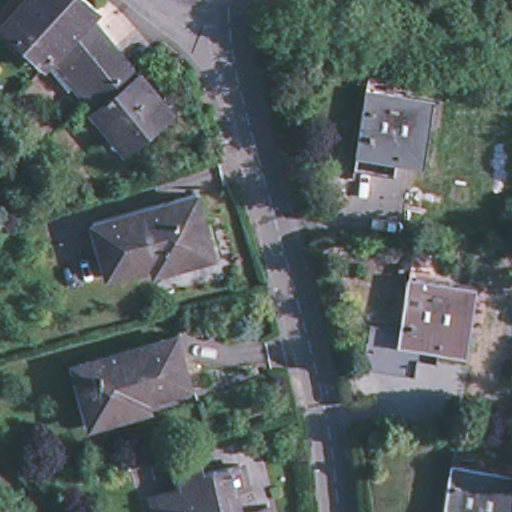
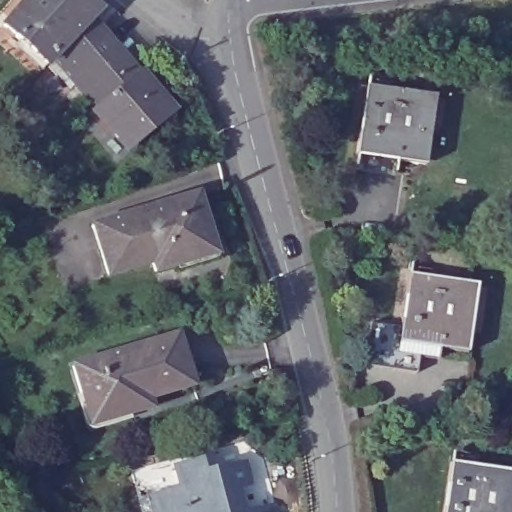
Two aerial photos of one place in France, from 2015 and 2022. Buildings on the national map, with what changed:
unchanged [(24,0),(98,0),(102,3),(93,12),(92,11),(57,49),(58,50),(50,58),(9,17),(24,0)]
unchanged [(57,49),(92,11),(93,12),(172,106),(133,141),(65,62),(67,60),(58,50),(57,49)]
unchanged [(367,100),(427,111),(417,166),(357,155),(367,100)]
unchanged [(209,223),(202,225),(210,249),(180,257),(182,267),(161,272),(159,264),(112,276),(97,225),(201,195),(209,223)]
unchanged [(414,278),(474,288),(465,341),(405,331),(414,278)]
unchanged [(194,388),(150,400),(153,409),(131,415),(128,405),(95,415),(89,416),(82,394),(74,366),(180,335),(194,388)]
unchanged [(242,467),(247,487),(230,492),(235,512),(160,512),(157,497),(181,491),(177,470),(200,465),(203,477),(242,467)]
unchanged [(453,477),(512,487),(512,497),(510,512),(448,512),(453,477)]
unchanged [(271,510),(271,512),(265,512),(271,510)]

